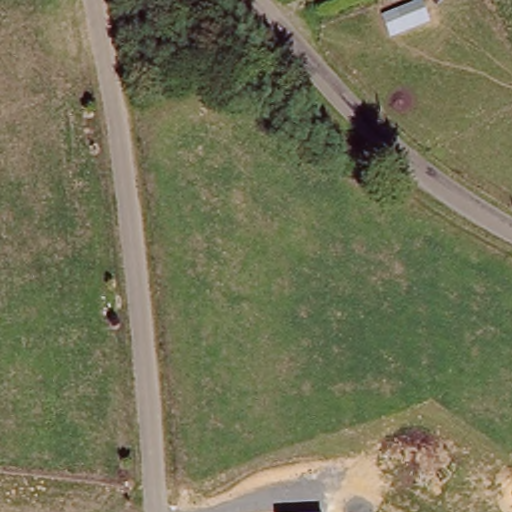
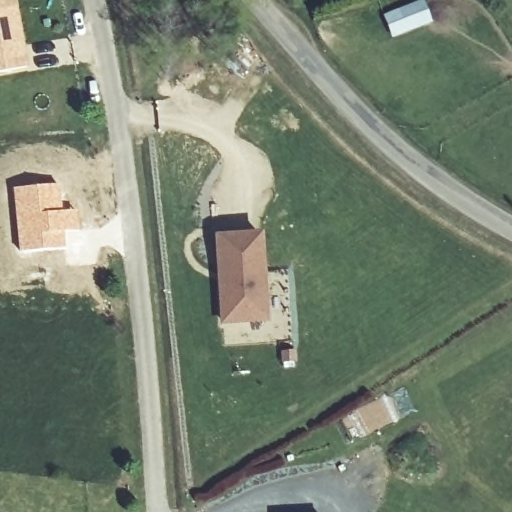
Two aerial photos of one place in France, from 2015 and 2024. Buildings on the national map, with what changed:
new [(31,66),(0,72),(0,0),(18,0),(31,66)]
new [(432,24),(391,39),(383,17),(423,1),(432,24)]
new [(59,184),(62,210),(78,208),(81,229),(63,231),(65,247),(19,251),(12,187),(59,184)]
new [(267,233),(273,318),(230,321),(224,236),(267,233)]

